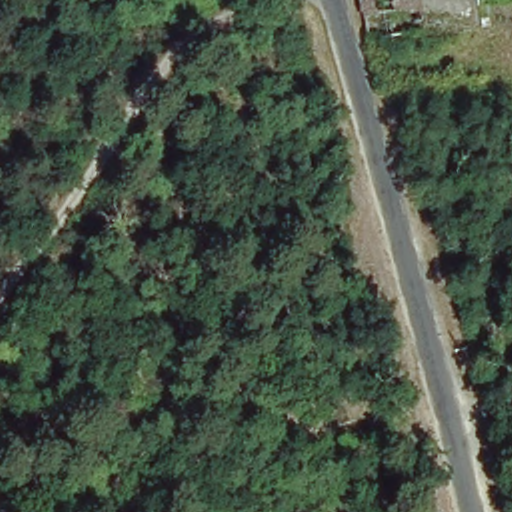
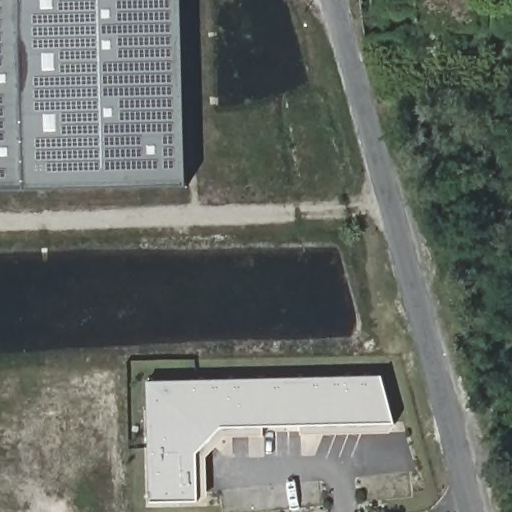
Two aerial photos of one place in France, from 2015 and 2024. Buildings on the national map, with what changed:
new [(182,0),(187,186),(0,190),(0,0),(182,0)]
demolished [(460,0),(464,28),(360,38),(355,0),(460,0)]
new [(149,383),(384,378),(396,423),(221,426),(198,450),(198,500),(150,501),(149,383)]

